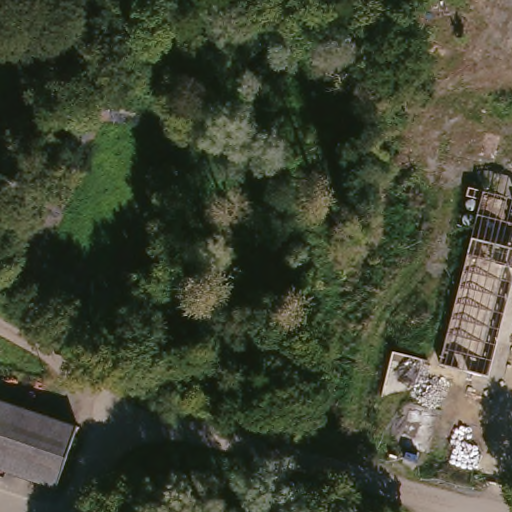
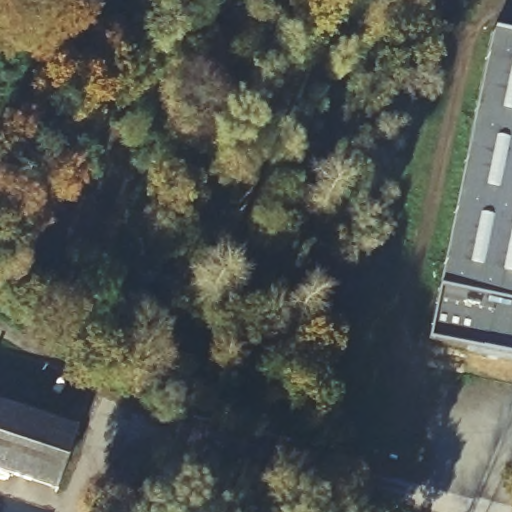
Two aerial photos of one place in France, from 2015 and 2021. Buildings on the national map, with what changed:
new [(439,290),(490,36),(512,41),(512,359),(430,341),(439,290)]
demolished [(483,381),(434,368),(464,249),(512,262),(512,274),(483,381)]
unchanged [(58,483),(0,467),(0,397),(78,418),(58,483)]

